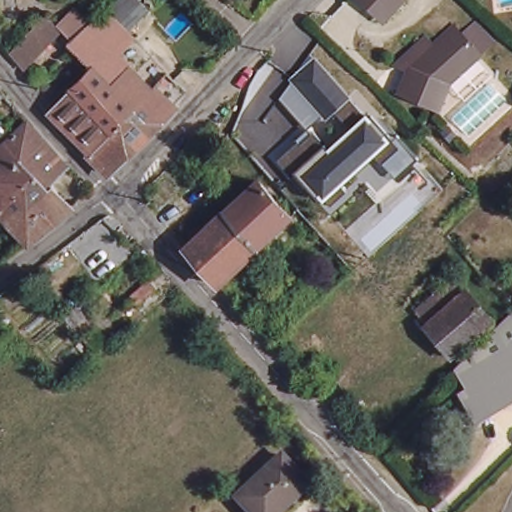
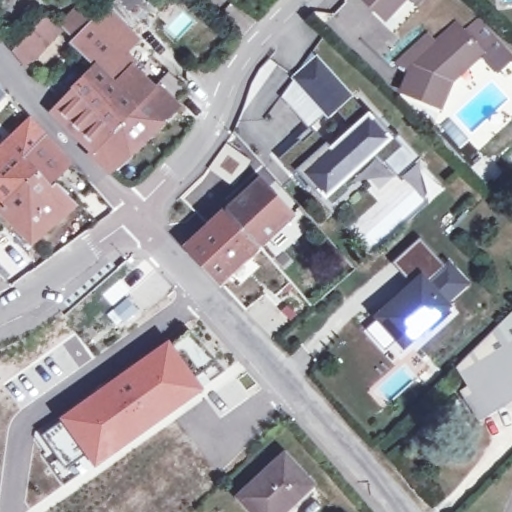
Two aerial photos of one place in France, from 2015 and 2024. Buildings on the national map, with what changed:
unchanged [(124,0),(136,0),(146,10),(125,30),(141,45),(157,61),(143,76),(182,113),(160,134),(141,113),(117,137),(79,96),(100,74),(75,49),(68,41),(35,77),(17,60),(52,24),(60,33),(62,30),(76,19),(90,34),(94,30),(110,14),(124,0)]
unchanged [(364,0),(402,0),(383,19),(364,0)]
unchanged [(427,107),(418,104),(391,92),(397,75),(388,66),(397,58),(417,38),(423,44),(443,25),(452,33),(465,20),(483,39),(470,52),(435,85),(427,107)]
unchanged [(397,177),(376,154),(342,184),(347,191),(332,205),(327,199),(324,202),(297,174),(293,176),(280,159),(300,142),(297,139),(307,130),(311,134),(314,131),(327,149),(350,129),(336,111),(327,119),(322,115),(307,128),(280,98),(292,81),(290,78),(315,56),(394,139),(397,136),(417,159),(397,177)]
unchanged [(5,96),(0,102),(0,91),(5,96)]
unchanged [(79,96),(117,137),(141,113),(160,134),(115,179),(93,159),(96,155),(56,119),(79,96)]
unchanged [(2,140),(25,119),(40,135),(63,161),(42,182),(66,206),(26,242),(23,239),(18,234),(0,214),(0,143),(2,140)]
unchanged [(291,215),(217,284),(184,248),(258,179),(291,215)]
demolished [(411,218),(391,235),(382,227),(402,209),(411,218)]
new [(400,297),(396,292),(407,282),(389,264),(393,259),(418,238),(444,267),(446,265),(462,284),(441,303),(450,314),(428,332),(423,325),(401,345),(395,339),(382,351),(362,330),(376,318),(400,297)]
new [(120,280),(129,290),(125,294),(138,309),(117,326),(107,314),(113,307),(103,295),(120,280)]
demolished [(449,283),(487,326),(450,359),(412,315),(449,283)]
unchanged [(512,315),(512,324),(508,317),(512,315)]
unchanged [(457,398),(465,393),(453,373),(508,317),(512,324),(512,400),(490,413),(473,423),(457,398)]
new [(83,399),(169,339),(205,390),(145,434),(93,469),(85,457),(58,419),(83,399)]
new [(58,419),(85,457),(65,471),(38,436),(58,419)]
unchanged [(312,484),(293,502),(291,499),(278,512),(252,512),(238,498),(283,456),(312,484)]

